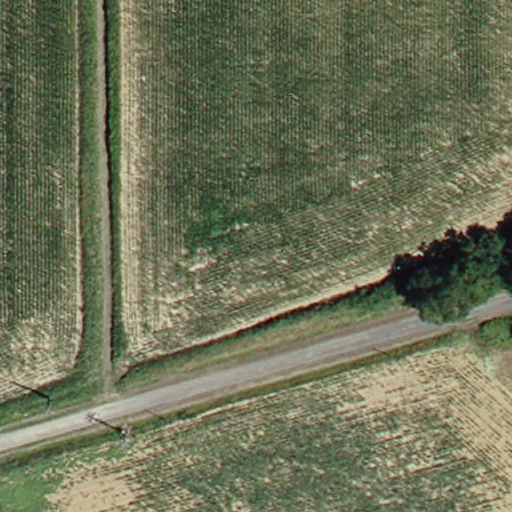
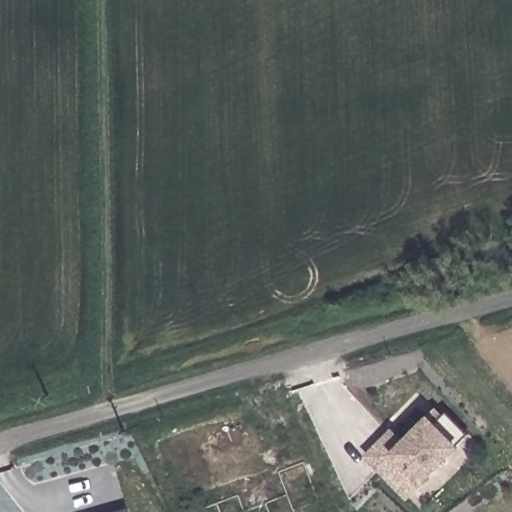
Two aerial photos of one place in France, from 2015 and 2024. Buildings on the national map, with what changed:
new [(376,466),(364,455),(388,431),(400,442),(424,417),(432,410),(437,416),(443,410),(456,424),(465,433),(453,445),(419,479),(404,495),(398,489),(376,466)]
new [(129,512),(114,512),(128,508),(129,512)]

